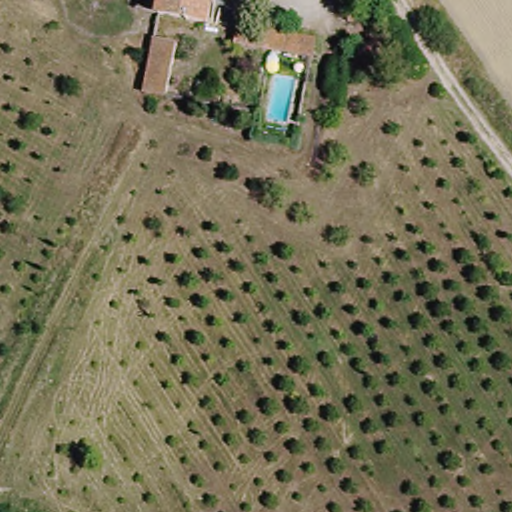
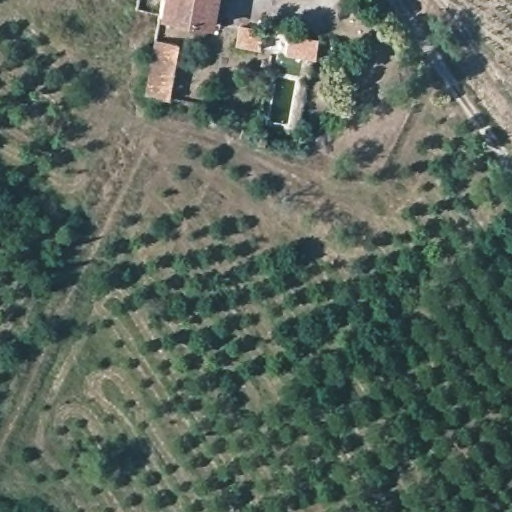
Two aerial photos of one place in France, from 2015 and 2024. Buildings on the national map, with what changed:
unchanged [(200,0),(196,21),(163,15),(165,0),(200,0)]
unchanged [(203,22),(207,0),(217,0),(213,23),(203,22)]
unchanged [(324,43),(321,62),(230,49),(232,30),(324,43)]
unchanged [(155,45),(175,47),(168,101),(147,97),(152,60),(155,45)]

